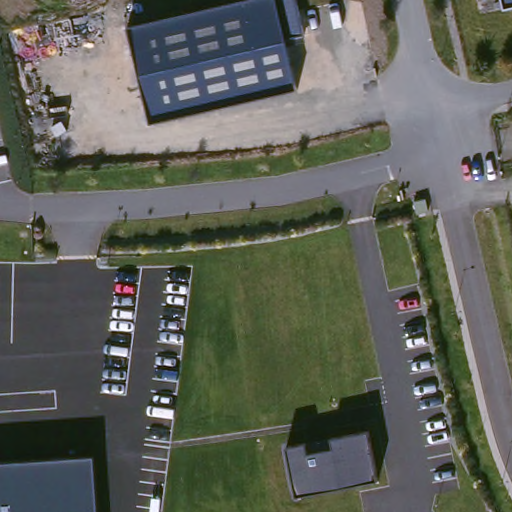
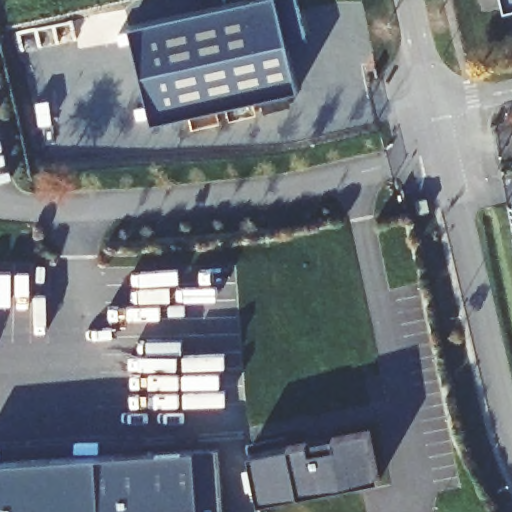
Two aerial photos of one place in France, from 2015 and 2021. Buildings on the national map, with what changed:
unchanged [(151,124),(129,28),(244,0),(297,0),(307,42),(287,47),(297,90),(151,124)]
unchanged [(504,0),(512,0),(512,6),(505,8),(504,0)]
unchanged [(377,478),(298,494),(288,447),(367,432),(377,478)]
new [(98,512),(94,457),(193,448),(194,447),(218,445),(223,512),(98,512)]
unchanged [(94,457),(98,512),(0,512),(0,463),(94,457)]

